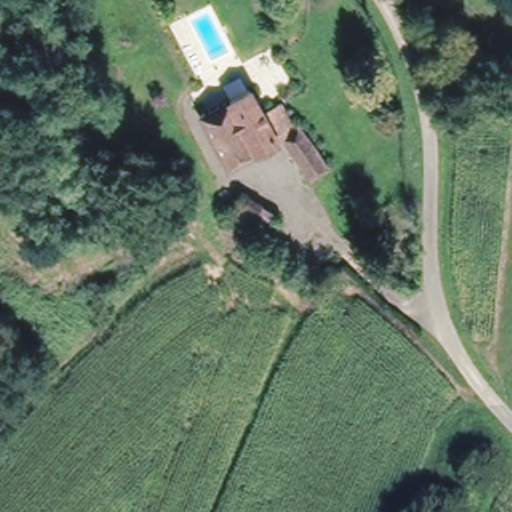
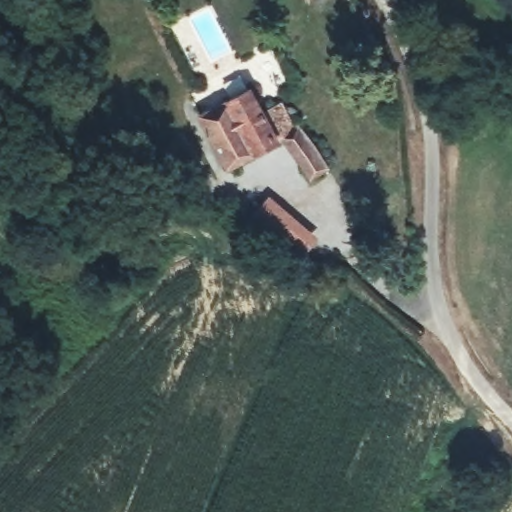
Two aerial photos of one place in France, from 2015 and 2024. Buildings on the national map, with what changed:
unchanged [(245,84),(260,105),(274,96),(292,120),(296,118),(326,161),(321,165),(327,172),(317,180),(311,172),(307,175),(277,135),(227,164),(220,154),(196,113),(245,84)]
unchanged [(272,218),(262,235),(227,213),(237,195),(272,218)]

